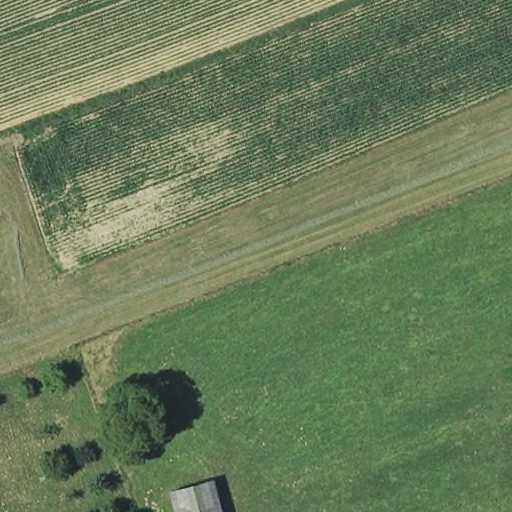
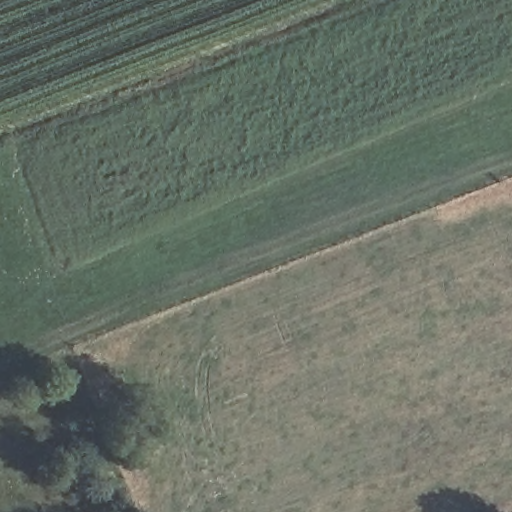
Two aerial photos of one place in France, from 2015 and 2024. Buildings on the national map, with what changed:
demolished [(213,477),(222,512),(171,512),(164,492),(213,477)]

